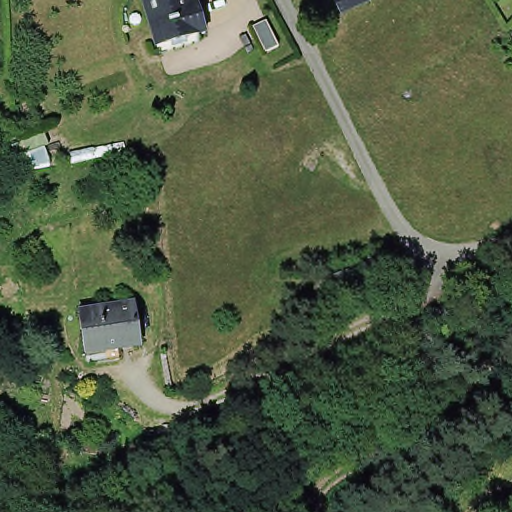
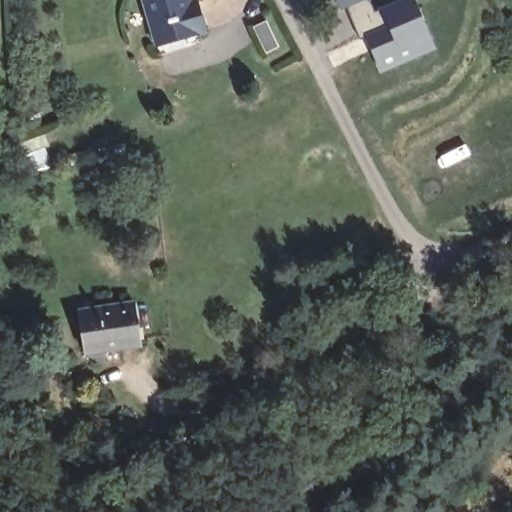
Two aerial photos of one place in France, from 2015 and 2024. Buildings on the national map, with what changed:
unchanged [(204,6),(213,36),(162,51),(148,0),(191,0),(195,10),(204,6)]
unchanged [(335,0),(340,0),(336,2),(335,0)]
new [(374,0),(377,6),(351,17),(344,0),(374,0)]
new [(380,67),(365,33),(359,35),(351,17),(393,0),(416,0),(430,34),(434,45),(416,52),(380,67)]
unchanged [(138,350),(85,357),(81,314),(135,308),(138,350)]

